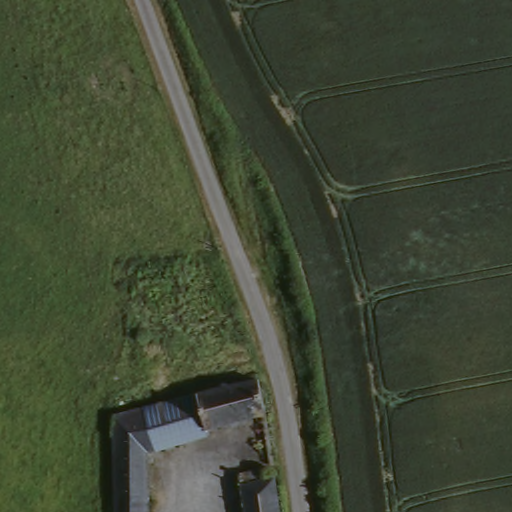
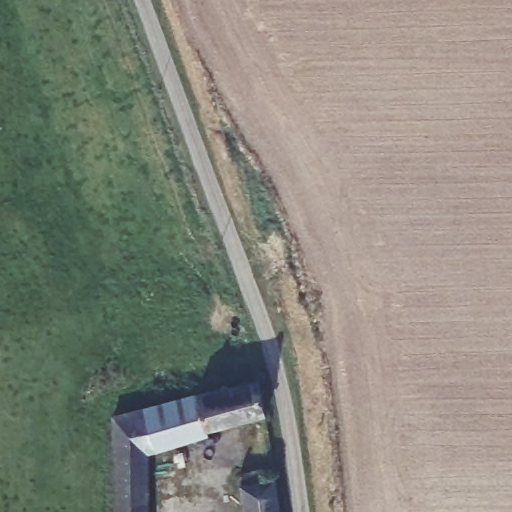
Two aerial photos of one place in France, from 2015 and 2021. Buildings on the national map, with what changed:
unchanged [(267,428),(148,453),(143,512),(113,512),(121,416),(254,384),(267,428)]
unchanged [(260,483),(267,482),(271,512),(239,512),(235,474),(259,472),(260,483)]

